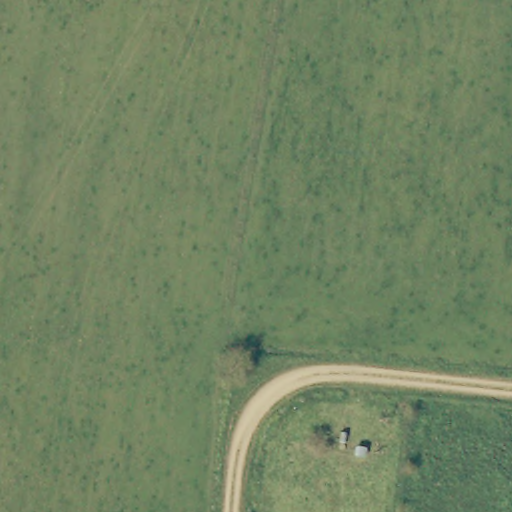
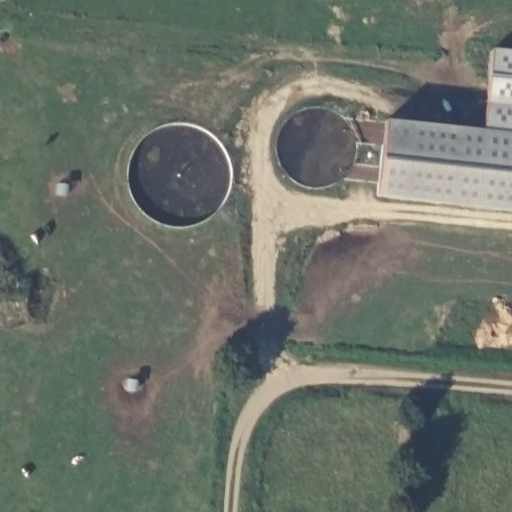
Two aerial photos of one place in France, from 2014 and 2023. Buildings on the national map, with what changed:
new [(385,121),(512,135),(512,213),(376,198),(385,121)]

